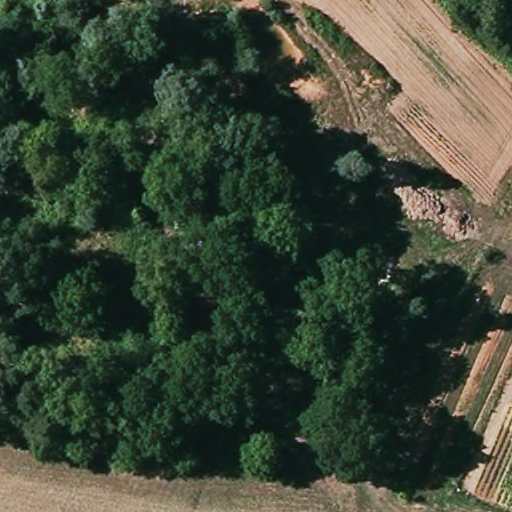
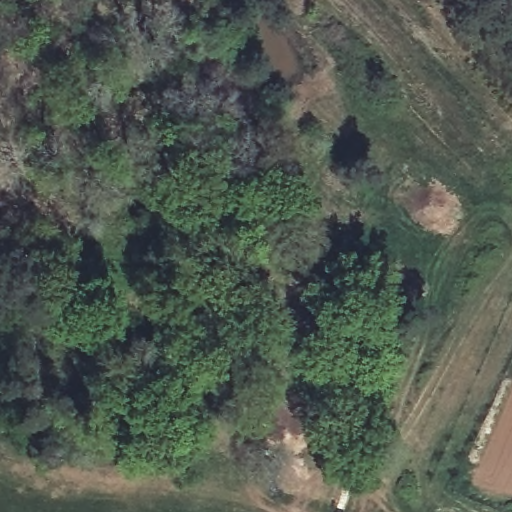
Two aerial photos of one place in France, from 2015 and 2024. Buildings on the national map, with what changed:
[]

